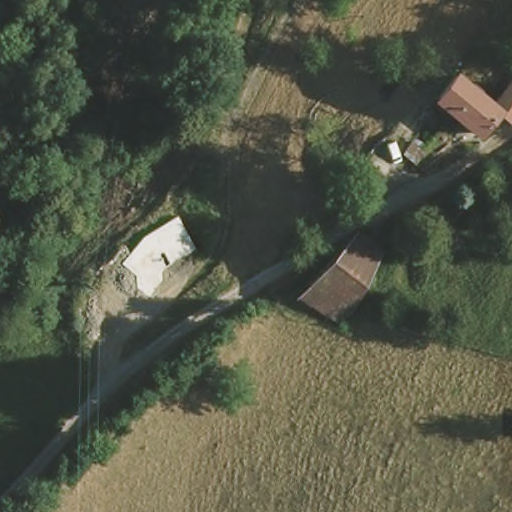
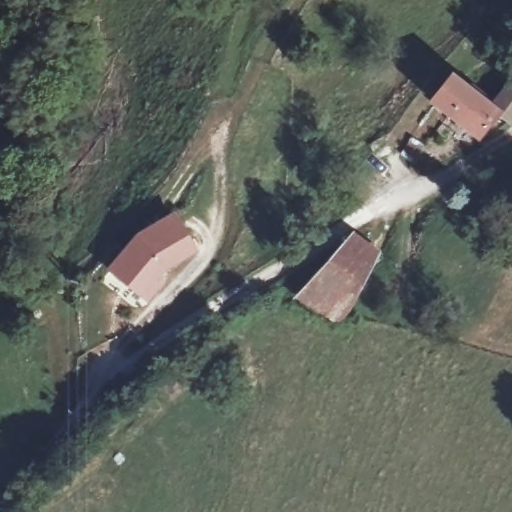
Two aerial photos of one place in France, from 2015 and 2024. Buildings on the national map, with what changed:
unchanged [(494,114),(510,89),(512,90),(512,126),(500,119),(485,141),(445,118),(460,93),(494,114)]
new [(109,265),(138,230),(177,210),(200,250),(166,270),(170,277),(150,302),(109,265)]
unchanged [(340,307),(310,292),(345,237),(372,250),(344,299),(340,307)]

